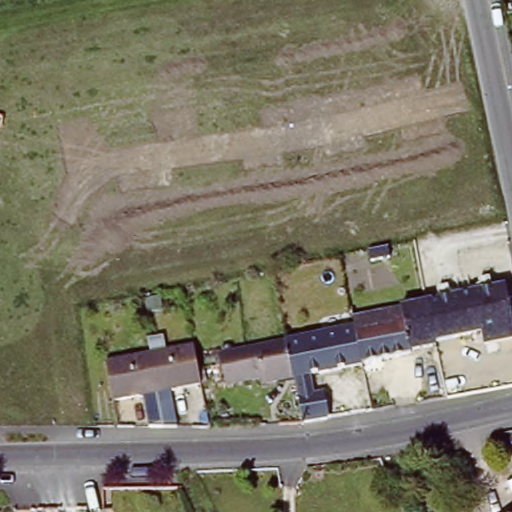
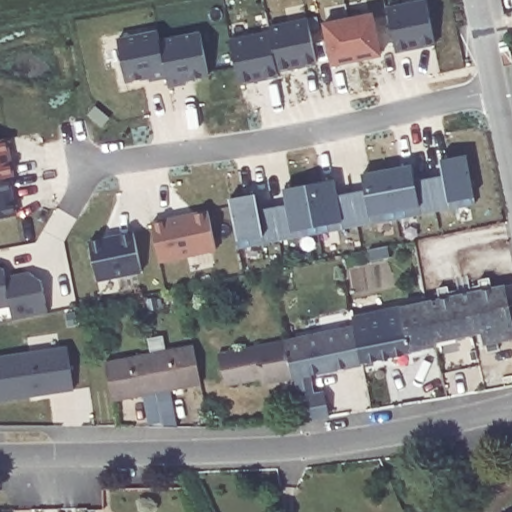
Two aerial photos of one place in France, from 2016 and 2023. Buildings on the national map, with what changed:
new [(416,0),(426,0),(438,44),(395,52),(386,6),(416,0)]
new [(321,22),(372,12),(380,55),(331,65),(321,22)]
new [(227,39),(270,30),(267,25),(306,18),(316,65),(277,72),(278,77),(238,85),(227,39)]
new [(116,39),(158,30),(160,39),(198,32),(207,77),(185,81),(185,84),(168,87),(165,77),(149,81),(147,77),(125,82),(116,39)]
new [(12,176),(6,176),(15,215),(0,218),(0,140),(6,139),(12,176)]
new [(421,214),(421,211),(291,236),(292,239),(237,246),(235,239),(228,199),(257,195),(260,210),(281,205),(278,189),(333,179),(335,194),(365,187),(362,174),(413,165),(415,178),(445,174),(440,157),(467,155),(474,195),(471,196),(475,202),(421,214)]
new [(158,261),(151,222),(207,211),(215,251),(158,261)]
new [(97,280),(88,242),(99,239),(98,237),(121,232),(122,235),(131,232),(141,272),(97,280)]
unchanged [(390,256),(371,260),(369,249),(387,245),(390,256)]
new [(8,276),(32,270),(44,278),(51,310),(16,318),(12,304),(0,307),(0,263),(6,267),(8,276)]
unchanged [(510,291),(512,303),(512,344),(491,348),(490,342),(480,297),(510,291)]
unchanged [(427,355),(417,358),(417,355),(426,352),(417,310),(480,297),(490,342),(427,355)]
unchanged [(417,358),(366,368),(315,378),(318,399),(328,397),(332,422),(332,424),(308,428),(298,382),(291,346),(307,343),(305,327),(322,323),(322,322),(343,318),(357,315),(359,322),(417,310),(426,352),(417,355),(417,358)]
unchanged [(266,389),(265,383),(231,390),(223,360),(291,346),(298,382),(266,389)]
unchanged [(149,400),(118,406),(110,367),(198,350),(206,390),(175,395),(182,432),(168,432),(155,432),(149,400)]

